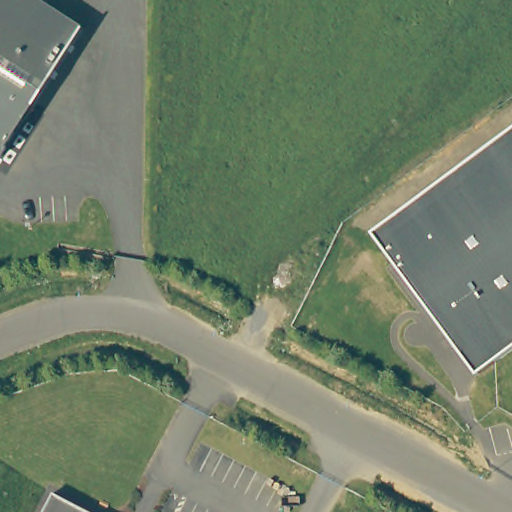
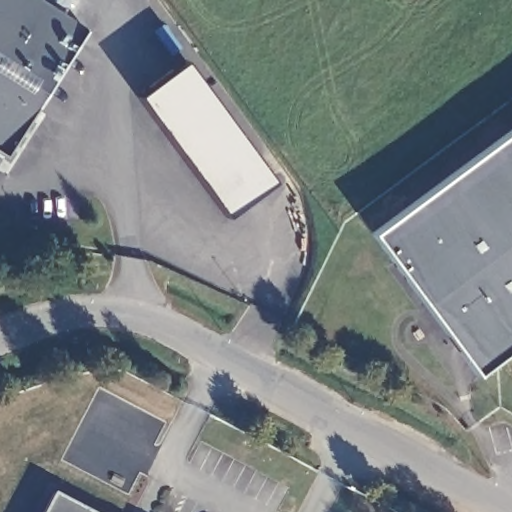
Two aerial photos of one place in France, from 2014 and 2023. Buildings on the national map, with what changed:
unchanged [(1,156),(0,156),(0,0),(38,0),(81,28),(1,156)]
new [(229,213),(140,92),(184,60),(273,181),(229,213)]
unchanged [(477,381),(389,258),(375,239),(414,210),(512,140),(512,357),(492,370),(477,381)]
unchanged [(44,512),(54,493),(89,512),(44,512)]

